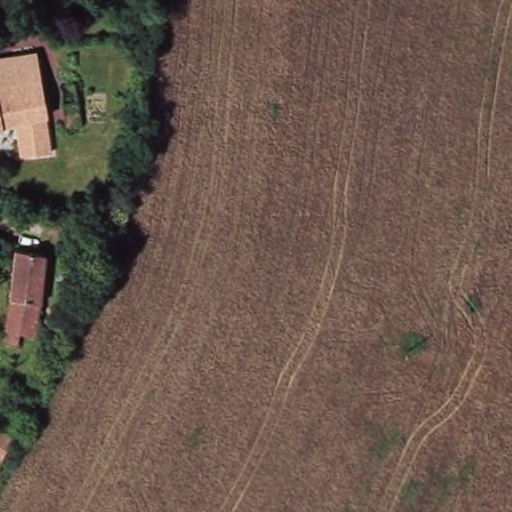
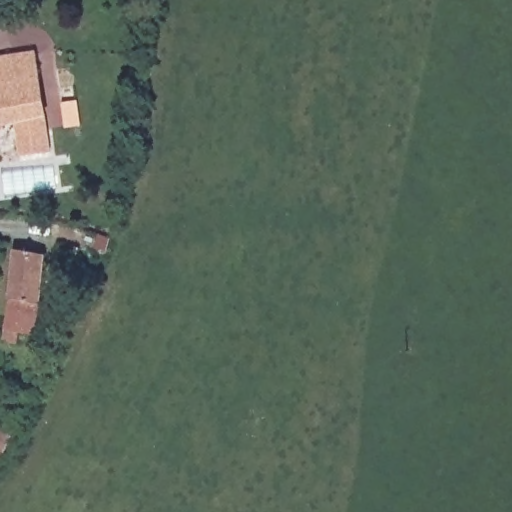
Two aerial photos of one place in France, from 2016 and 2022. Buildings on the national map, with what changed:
unchanged [(16,122),(0,125),(0,56),(35,50),(54,152),(22,157),(16,122)]
unchanged [(65,102),(79,101),(83,124),(67,128),(65,102)]
unchanged [(15,294),(23,244),(49,249),(45,292),(38,330),(25,328),(23,338),(9,335),(15,294)]
unchanged [(2,458),(0,457),(0,429),(13,435),(2,458)]

